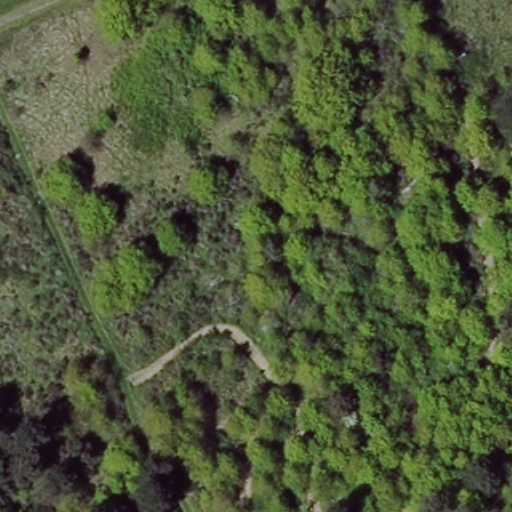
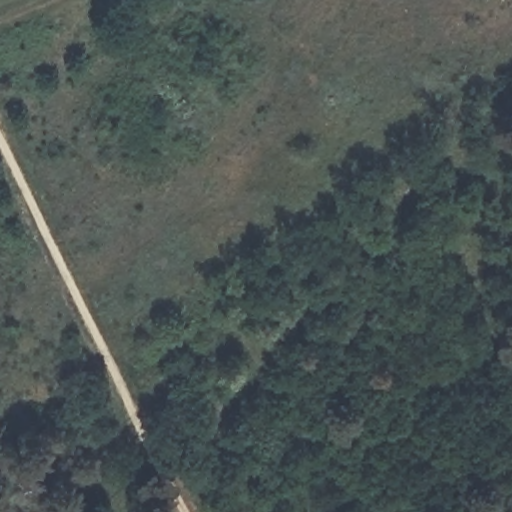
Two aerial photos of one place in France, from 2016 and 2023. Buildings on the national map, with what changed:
[]

